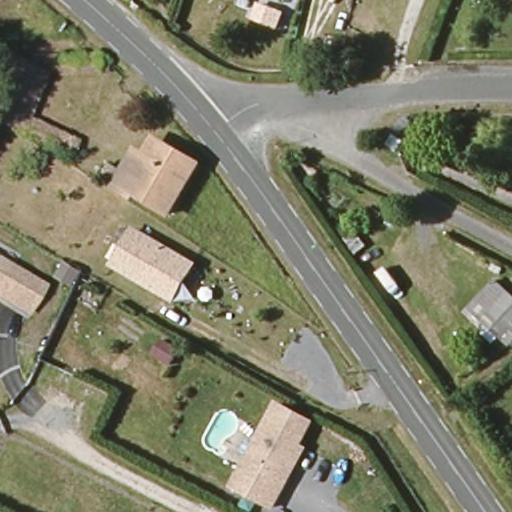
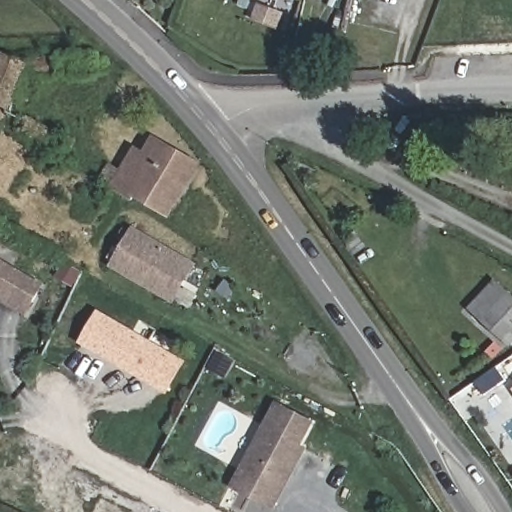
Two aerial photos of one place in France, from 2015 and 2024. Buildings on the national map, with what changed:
unchanged [(92,76),(49,78),(51,69),(36,69),(36,60),(52,60),(92,60),(92,76)]
unchanged [(67,160),(0,124),(0,74),(6,62),(30,75),(45,83),(27,121),(75,146),(67,160)]
unchanged [(140,159),(145,162),(155,143),(163,147),(199,167),(169,222),(121,196),(140,159)]
unchanged [(110,170),(124,176),(119,188),(104,181),(110,170)]
unchanged [(199,264),(174,305),(112,268),(135,227),(199,264)]
unchanged [(46,285),(27,316),(0,300),(0,257),(46,285)]
unchanged [(468,309),(496,280),(512,296),(512,332),(502,342),(468,309)]
new [(99,310),(187,361),(167,395),(79,344),(99,310)]
unchanged [(292,471),(274,503),(235,482),(280,400),(313,419),(298,445),(304,448),(292,471)]

